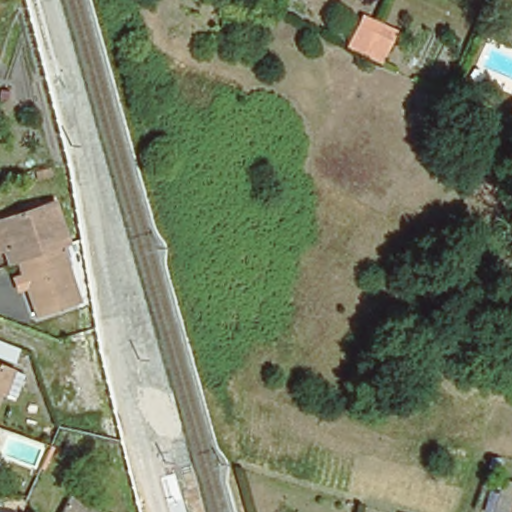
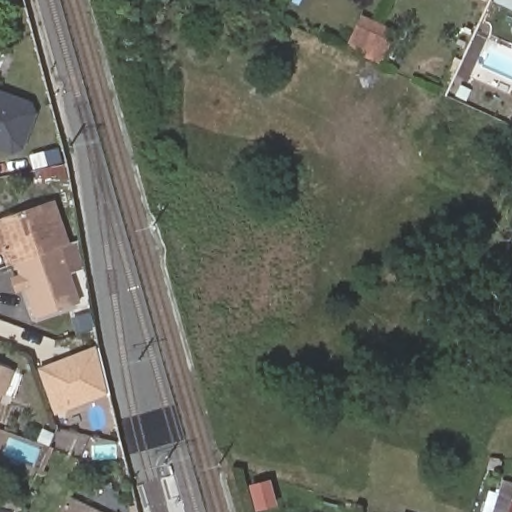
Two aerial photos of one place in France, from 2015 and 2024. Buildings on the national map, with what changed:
unchanged [(385,66),(369,59),(353,51),(366,20),(384,28),(400,36),(385,66)]
new [(26,148),(17,151),(0,145),(0,92),(34,105),(39,114),(26,148)]
unchanged [(20,251),(11,253),(7,236),(1,238),(0,236),(0,208),(3,207),(6,206),(60,192),(72,236),(63,239),(20,251)]
unchanged [(63,239),(78,295),(36,307),(20,251),(63,239)]
demolished [(121,405),(79,407),(77,382),(63,383),(60,353),(75,352),(75,347),(117,344),(121,405)]
new [(109,401),(54,414),(36,370),(96,355),(97,358),(109,401)]
unchanged [(1,367),(17,374),(11,394),(0,390),(0,367),(1,367)]
unchanged [(512,473),(512,512),(497,512),(489,509),(501,469),(512,473)]
unchanged [(84,512),(64,512),(68,505),(84,512)]

